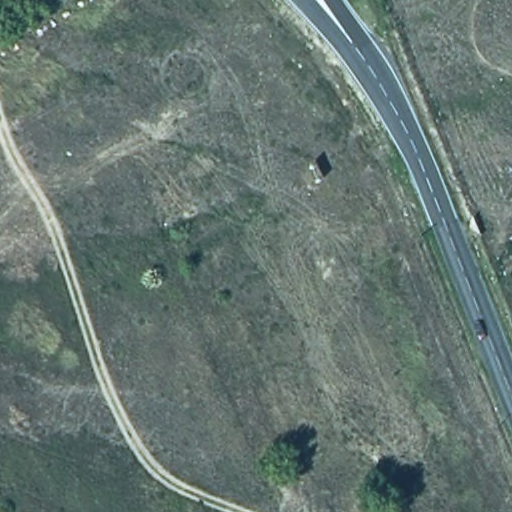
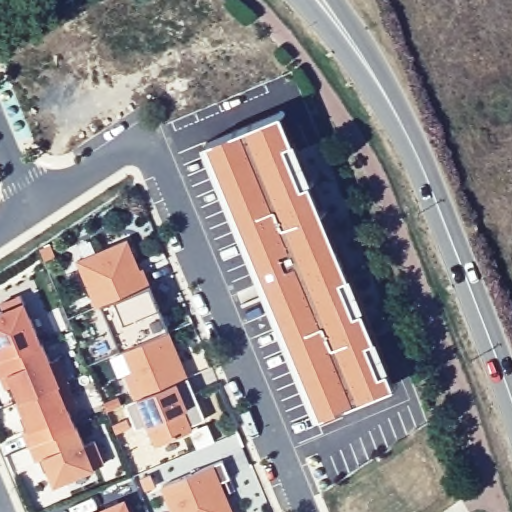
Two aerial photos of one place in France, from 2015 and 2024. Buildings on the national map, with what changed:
new [(278,110),(393,384),(318,412),(205,142),(278,110)]
new [(140,268),(142,266),(148,283),(100,304),(100,305),(95,308),(76,259),(127,238),(140,268)]
new [(100,304),(148,283),(167,330),(119,350),(100,304)]
new [(25,299),(50,361),(60,358),(67,380),(61,382),(17,400),(11,384),(5,388),(0,379),(0,310),(25,299)]
new [(175,381),(162,387),(134,398),(122,375),(131,371),(119,350),(168,329),(187,377),(175,381)]
new [(190,423),(192,430),(154,445),(145,425),(135,430),(124,403),(134,398),(162,387),(175,381),(187,377),(205,418),(190,423)]
new [(67,380),(77,403),(67,407),(75,425),(28,444),(22,430),(29,427),(17,400),(67,380)]
new [(85,444),(95,441),(105,463),(95,467),(54,484),(42,457),(35,460),(28,444),(54,433),(75,425),(85,444)]
new [(222,459),(229,477),(218,481),(231,512),(173,512),(162,484),(222,459)]
new [(130,512),(85,512),(124,496),(130,512)]

